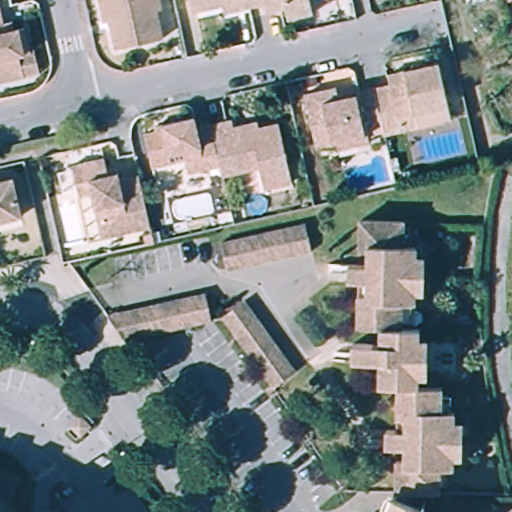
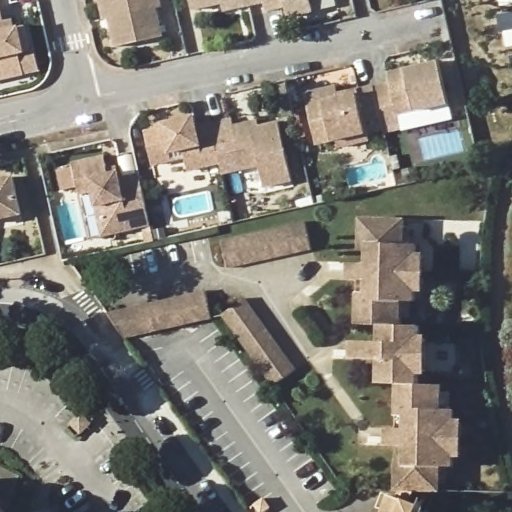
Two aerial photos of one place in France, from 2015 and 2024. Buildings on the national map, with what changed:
unchanged [(163,17),(158,19),(163,44),(116,55),(110,30),(105,30),(98,0),(159,0),(163,17)]
unchanged [(192,4),(191,0),(207,0),(192,4)]
unchanged [(223,0),(251,0),(249,1),(224,6),(223,0)]
unchanged [(311,7),(287,13),(284,1),(267,5),(265,0),(309,0),(311,7)]
unchanged [(0,86),(0,25),(1,28),(11,26),(13,34),(20,32),(26,57),(30,56),(36,79),(22,82),(0,86)]
unchanged [(399,131),(381,135),(378,120),(370,87),(388,83),(385,72),(438,60),(447,105),(414,113),(417,126),(399,131)]
unchanged [(338,146),(335,138),(314,143),(301,92),(333,85),(334,94),(370,86),(370,87),(378,120),(362,123),(364,132),(365,139),(338,146)]
unchanged [(184,153),(171,156),(172,162),(153,166),(145,133),(155,131),(154,125),(163,124),(194,117),(195,127),(211,123),(211,124),(221,166),(189,174),(184,153)]
unchanged [(234,126),(256,120),(258,129),(278,123),(291,182),(263,189),(258,165),(222,173),(221,166),(211,124),(233,119),(234,126)]
unchanged [(85,191),(78,162),(109,155),(113,172),(124,169),(125,178),(145,173),(156,225),(115,235),(95,240),(85,191)]
unchanged [(19,218),(0,223),(0,184),(11,181),(19,218)]
unchanged [(223,242),(308,223),(314,250),(230,269),(223,242)]
unchanged [(365,300),(373,300),(372,289),(355,289),(355,270),(373,272),(373,257),(365,257),(366,226),(410,227),(408,255),(421,255),(420,263),(429,263),(428,293),(420,292),(420,306),(407,306),(407,333),(387,332),(364,331),(365,300)]
unchanged [(210,295),(216,321),(207,323),(205,323),(191,326),(146,336),(131,339),(127,333),(125,331),(122,327),(114,315),(141,309),(210,295)]
unchanged [(245,302),(295,372),(275,387),(224,316),(245,302)]
unchanged [(424,333),(424,344),(432,344),(431,376),(423,376),(423,393),(405,391),(385,392),(387,368),(359,368),(359,348),(387,349),(387,332),(407,333),(424,333)]
unchanged [(446,392),(446,412),(460,412),(459,426),(467,426),(467,457),(459,456),(458,472),(445,471),(445,497),(441,497),(436,497),(405,496),(402,496),(403,465),(410,465),(411,452),(393,453),(394,435),(412,436),(412,423),(405,422),(405,391),(423,393),(446,392)]
unchanged [(95,420),(78,438),(69,430),(86,411),(95,420)]
unchanged [(441,497),(434,512),(397,512),(405,496),(436,497),(441,497)]
unchanged [(4,500),(6,501),(8,502),(11,503),(13,505),(15,506),(17,507),(19,508),(21,509),(23,510),(25,511),(27,512),(0,512),(0,498),(2,499),(4,500)]
unchanged [(265,498),(272,509),(267,512),(254,512),(252,508),(265,498)]

